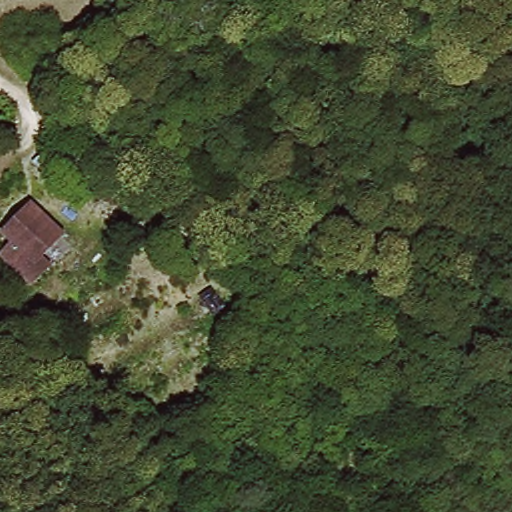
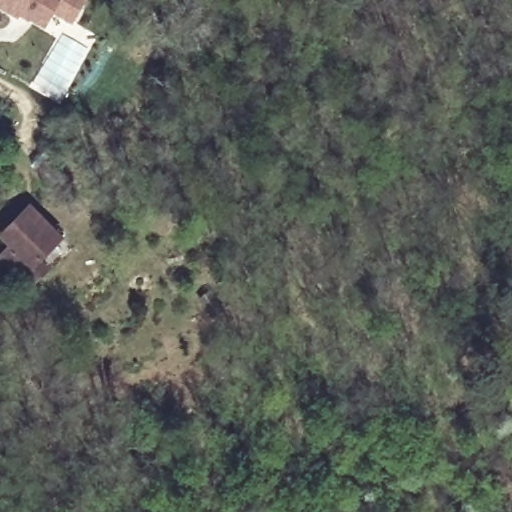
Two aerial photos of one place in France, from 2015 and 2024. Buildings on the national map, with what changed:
new [(77,20),(57,10),(49,25),(24,11),(22,15),(0,3),(0,0),(88,0),(77,20)]
unchanged [(39,287),(6,254),(15,246),(6,235),(36,204),(67,235),(45,258),(55,268),(39,287)]

